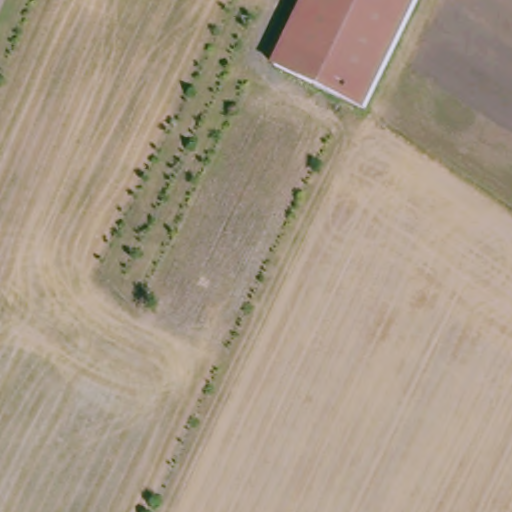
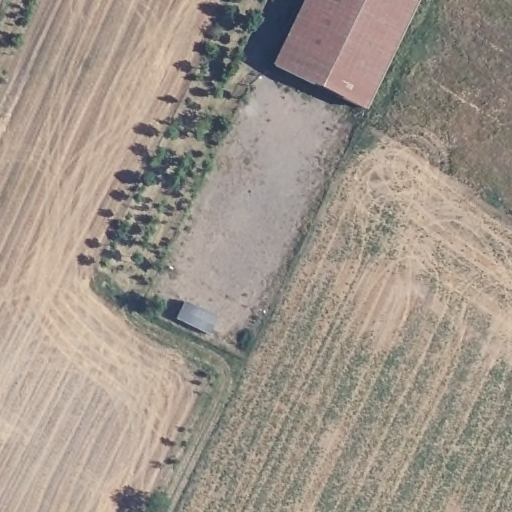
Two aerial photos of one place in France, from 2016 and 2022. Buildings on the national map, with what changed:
unchanged [(275,66),(306,0),(415,0),(363,110),(275,66)]

